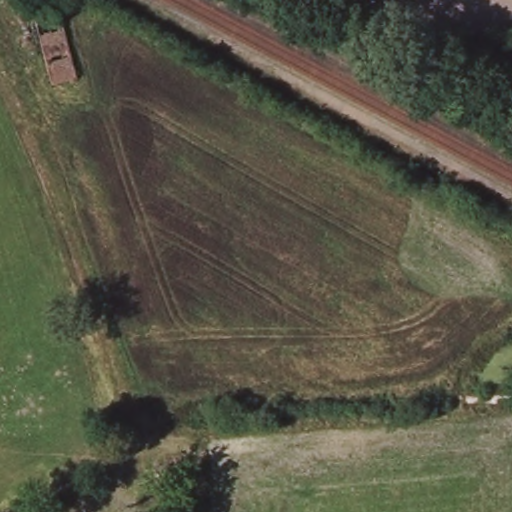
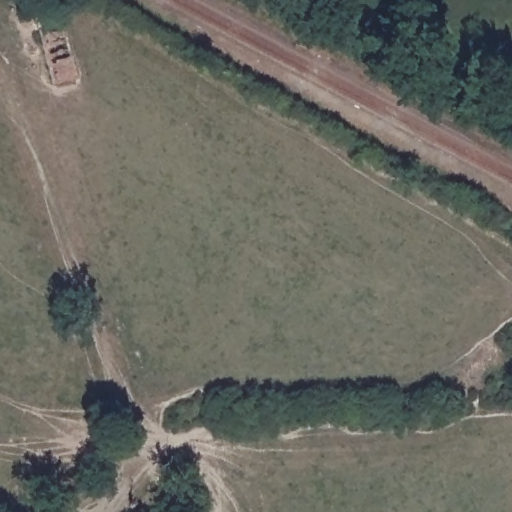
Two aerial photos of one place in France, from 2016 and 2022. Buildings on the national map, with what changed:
unchanged [(81,87),(56,94),(38,16),(61,10),(81,87)]

